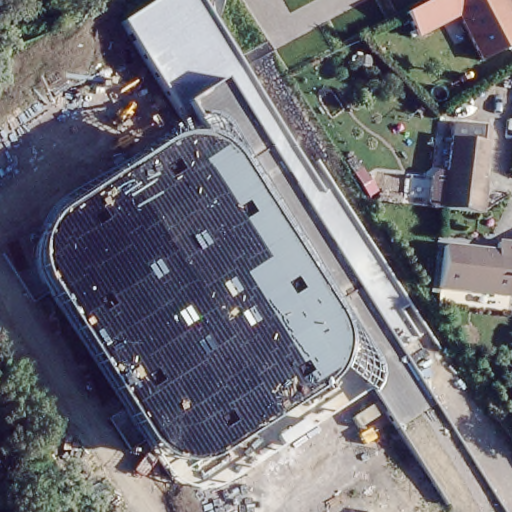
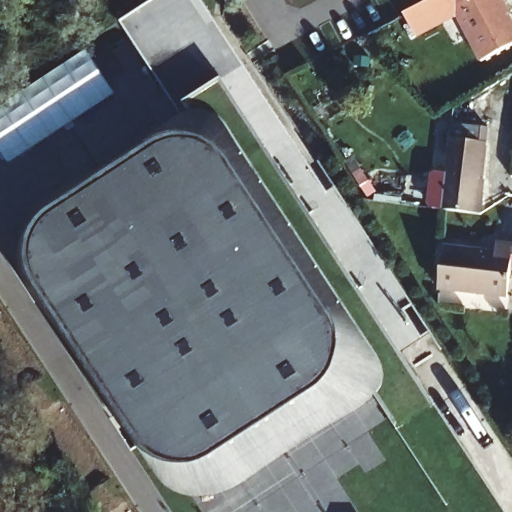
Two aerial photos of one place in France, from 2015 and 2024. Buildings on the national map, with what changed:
unchanged [(401,351),(434,406),(398,429),(339,330),(341,349),(336,365),(329,378),(320,388),(199,463),(183,466),(166,462),(154,457),(146,450),(138,441),(35,279),(31,269),(30,256),(34,243),(40,230),(49,219),(61,209),(165,143),(178,139),(188,137),(198,138),(209,141),(223,149),(204,117),(197,121),(189,125),(121,21),(156,0),(201,0),(327,193),(335,188),(412,304),(402,310),(419,336),(401,351)]
unchanged [(452,5),(458,16),(417,38),(405,16),(434,0),(463,0),(452,5)]
unchanged [(512,21),(512,40),(478,57),(452,5),(463,0),(502,0),(512,21)]
new [(9,164),(0,150),(0,107),(86,51),(115,95),(9,164)]
unchanged [(423,195),(428,172),(437,166),(443,168),(451,119),(483,123),(469,192),(476,193),(474,208),(469,211),(432,206),(423,195)]
unchanged [(361,168),(376,191),(368,197),(352,175),(361,168)]
unchanged [(506,293),(434,280),(439,240),(494,247),(496,238),(512,241),(512,271),(509,270),(506,293)]

